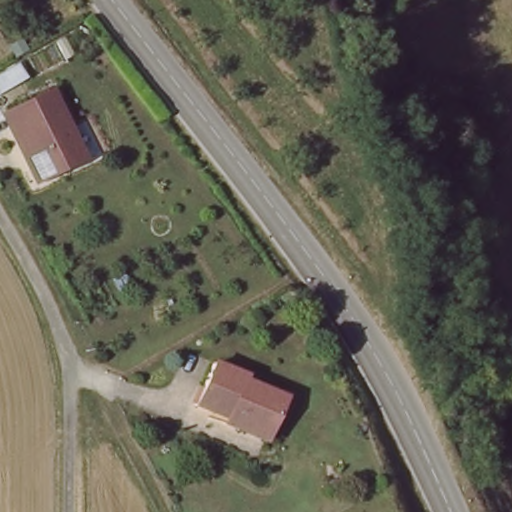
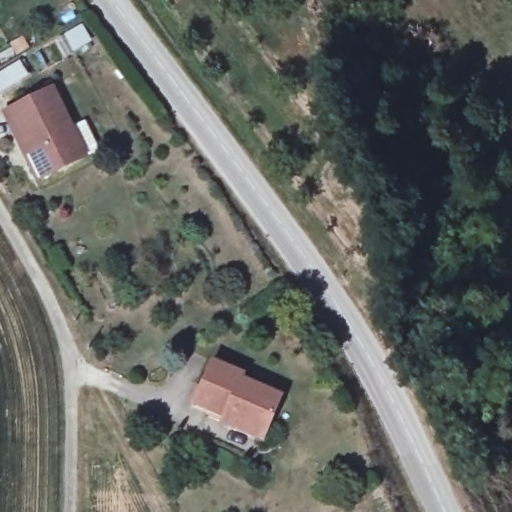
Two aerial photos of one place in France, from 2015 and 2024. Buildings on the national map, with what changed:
unchanged [(22,67),(30,81),(0,98),(0,80),(22,67)]
unchanged [(46,89),(78,157),(34,177),(2,109),(46,89)]
unchanged [(223,423),(226,417),(195,403),(214,361),(245,376),(243,380),(282,398),(267,431),(262,441),(223,423)]

